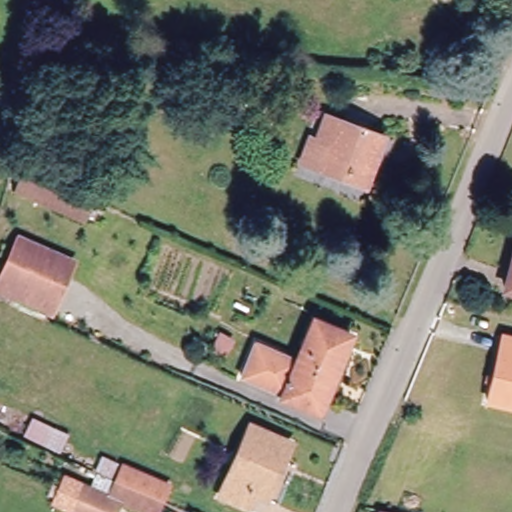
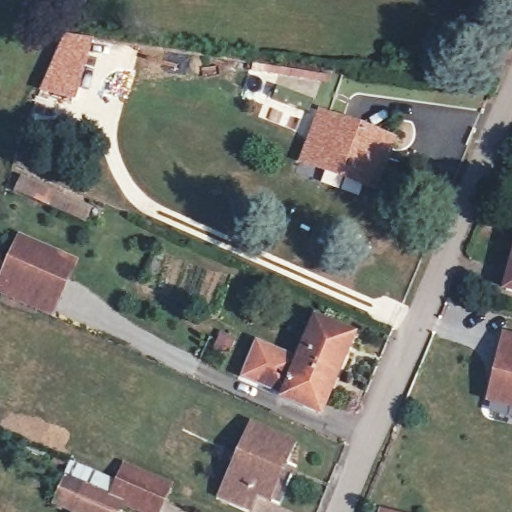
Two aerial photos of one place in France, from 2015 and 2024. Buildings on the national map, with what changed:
new [(75,102),(42,93),(61,30),(92,40),(75,102)]
unchanged [(365,189),(301,164),(312,141),(319,143),(328,121),(341,126),(385,144),(365,189)]
unchanged [(92,207),(84,224),(14,192),(22,176),(92,207)]
unchanged [(21,231),(76,255),(69,272),(14,248),(21,231)]
unchanged [(14,248),(69,272),(56,298),(1,274),(14,248)]
unchanged [(0,278),(1,274),(56,298),(50,315),(0,295),(0,278)]
unchanged [(512,276),(512,295),(506,293),(512,276)]
unchanged [(335,375),(331,373),(313,415),(279,402),(281,397),(268,392),(240,379),(255,346),(295,363),(311,326),(348,343),(335,375)]
unchanged [(512,336),(512,410),(485,404),(500,334),(512,336)]
new [(60,453),(23,436),(33,417),(70,434),(60,453)]
unchanged [(292,451),(269,505),(259,501),(255,512),(243,512),(222,503),(252,434),(292,451)]
unchanged [(117,512),(65,512),(50,506),(70,462),(117,484),(125,469),(170,490),(163,505),(160,512),(132,512),(120,506),(117,512)]

